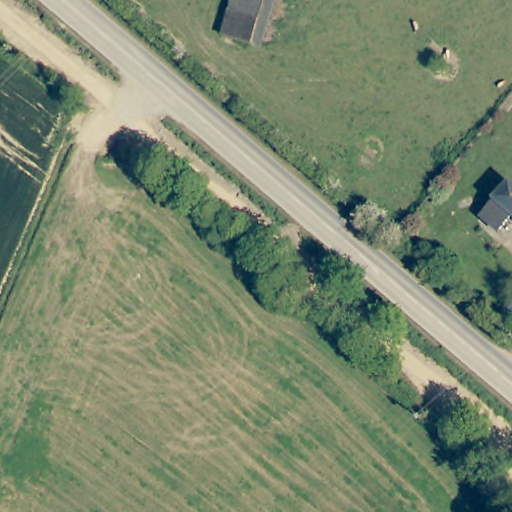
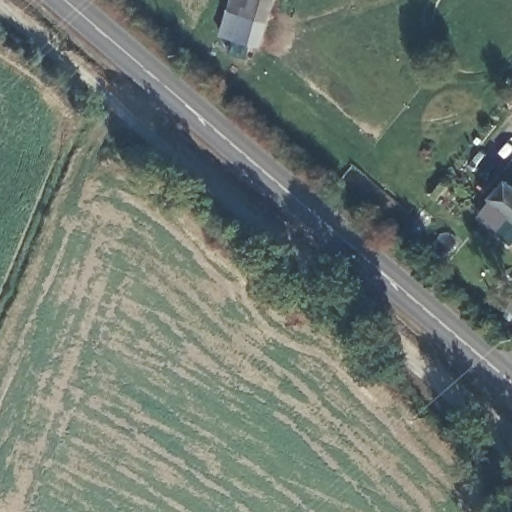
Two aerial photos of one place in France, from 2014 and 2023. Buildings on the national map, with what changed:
unchanged [(259,45),(228,35),(239,0),(272,0),(259,45)]
unchanged [(487,216),(496,206),(512,187),(512,223),(504,231),(487,216)]

